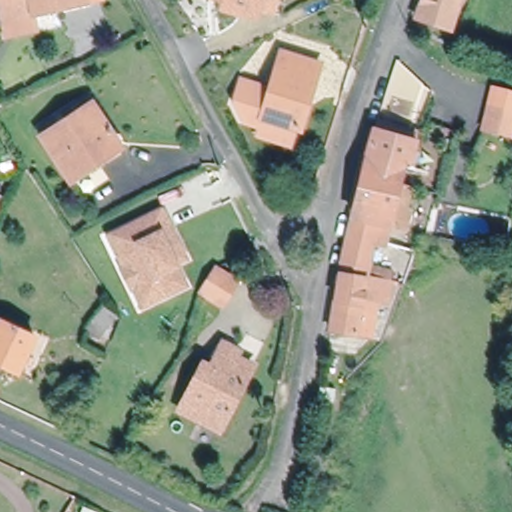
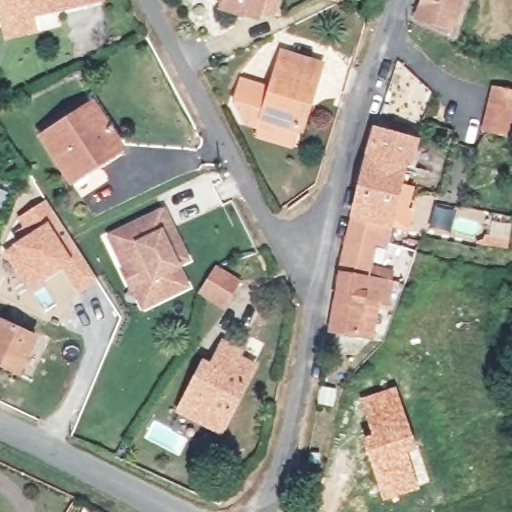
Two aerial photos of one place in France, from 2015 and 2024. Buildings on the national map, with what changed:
unchanged [(3,24),(0,10),(0,0),(100,0),(100,2),(84,5),(85,6),(3,24)]
unchanged [(275,12),(260,8),(258,16),(218,5),(220,0),(278,0),(275,12)]
unchanged [(449,34),(412,21),(419,0),(461,0),(449,34)]
unchanged [(256,132),(258,126),(238,118),(231,102),(239,78),(271,89),(284,51),(320,63),(298,129),(292,146),(256,132)]
unchanged [(512,139),(474,132),(484,84),(512,91),(512,139)]
unchanged [(41,139),(43,138),(37,128),(84,98),(89,107),(92,106),(122,151),(70,184),(41,139)]
unchanged [(403,212),(409,214),(405,230),(386,226),(345,217),(368,134),(371,124),(415,135),(413,145),(406,169),(402,168),(397,188),(407,191),(403,212)]
new [(7,192),(0,209),(0,189),(7,192)]
new [(26,234),(16,217),(46,199),(97,279),(77,294),(60,271),(31,293),(2,251),(26,234)]
unchanged [(162,208),(171,225),(167,227),(174,242),(178,239),(187,256),(176,262),(187,283),(157,298),(147,279),(132,287),(125,272),(128,271),(109,234),(162,208)]
unchanged [(345,217),(386,226),(383,245),(372,244),(364,281),(334,274),(345,217)]
unchanged [(242,279),(227,303),(205,290),(221,265),(242,279)]
unchanged [(353,339),(322,333),(334,274),(364,281),(363,285),(353,339)]
unchanged [(36,340),(21,372),(0,361),(0,323),(36,340)]
unchanged [(202,365),(208,368),(221,345),(239,355),(236,360),(252,368),(218,433),(178,412),(202,365)]
new [(395,386),(416,448),(408,452),(420,488),(382,501),(362,437),(370,434),(358,398),(395,386)]

